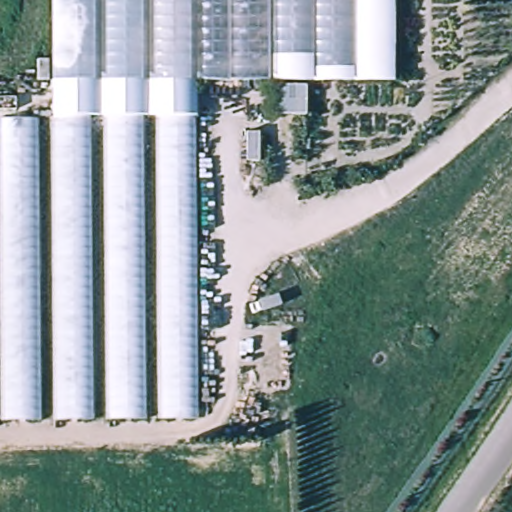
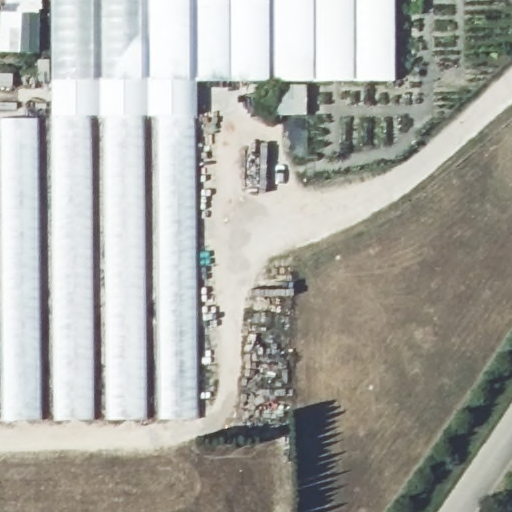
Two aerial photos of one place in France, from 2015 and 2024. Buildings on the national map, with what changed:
new [(5,11),(5,0),(41,0),(40,52),(0,52),(0,12),(5,11)]
unchanged [(400,81),(201,81),(201,117),(56,116),(56,0),(399,0),(400,81)]
unchanged [(310,85),(310,114),(280,114),(280,85),(310,85)]
unchanged [(327,115),(315,115),(315,85),(327,86),(327,115)]
unchanged [(204,420),(0,420),(0,118),(205,119),(204,420)]

